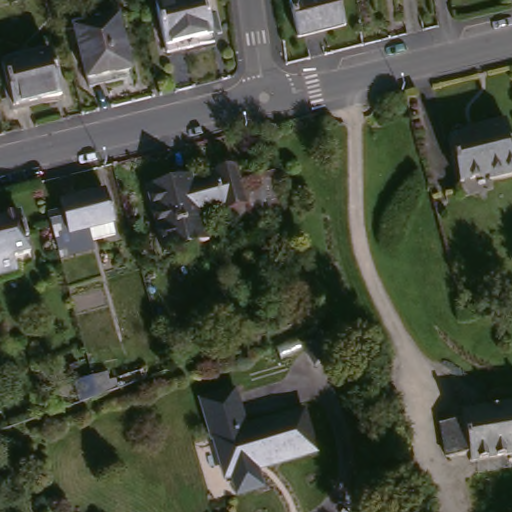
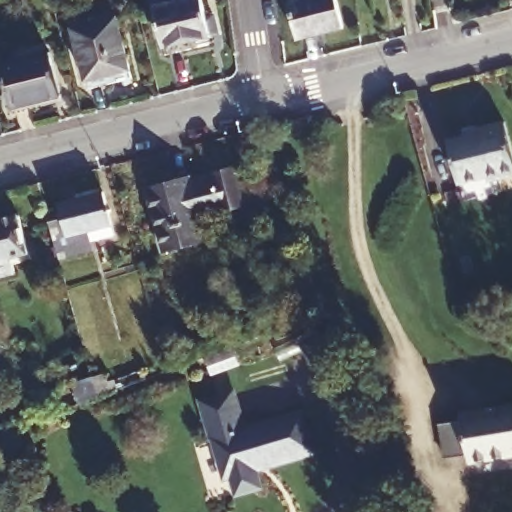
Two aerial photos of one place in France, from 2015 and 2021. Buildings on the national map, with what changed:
unchanged [(169,45),(161,9),(159,0),(208,0),(215,35),(169,45)]
unchanged [(339,0),(347,29),(304,41),(295,6),(317,0),(339,0)]
unchanged [(125,19),(136,70),(92,80),(80,28),(125,19)]
unchanged [(53,57),(63,100),(14,113),(4,70),(53,57)]
unchanged [(485,128),(485,121),(509,116),(512,127),(512,171),(493,176),(491,171),(463,176),(453,136),(485,128)]
unchanged [(295,228),(282,231),(277,213),(253,218),(248,205),(204,215),(194,175),(234,167),(239,181),(272,176),(279,199),(287,197),(295,228)]
unchanged [(210,242),(160,252),(146,184),(194,175),(204,215),(210,242)]
unchanged [(74,202),(71,193),(113,183),(123,226),(98,230),(100,239),(70,247),(59,205),(74,202)]
unchanged [(32,255),(14,259),(18,274),(0,278),(0,223),(24,218),(32,255)]
unchanged [(96,397),(76,405),(70,386),(92,380),(96,397)]
unchanged [(236,388),(248,426),(304,409),(316,449),(269,462),(267,455),(262,456),(259,465),(264,486),(240,492),(234,474),(225,475),(214,436),(213,437),(200,398),(236,388)]
unchanged [(464,414),(464,406),(512,397),(512,450),(473,457),(469,447),(448,452),(442,419),(464,414)]

